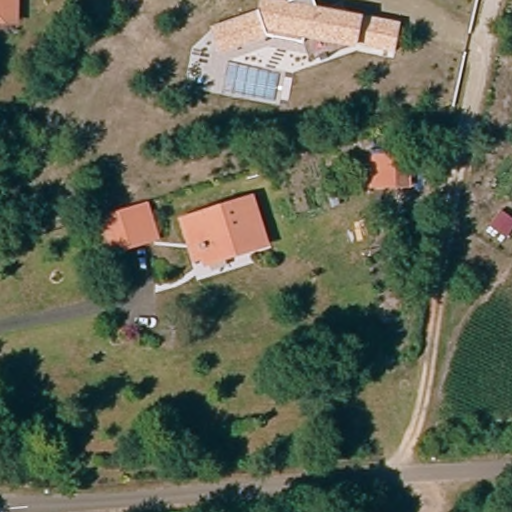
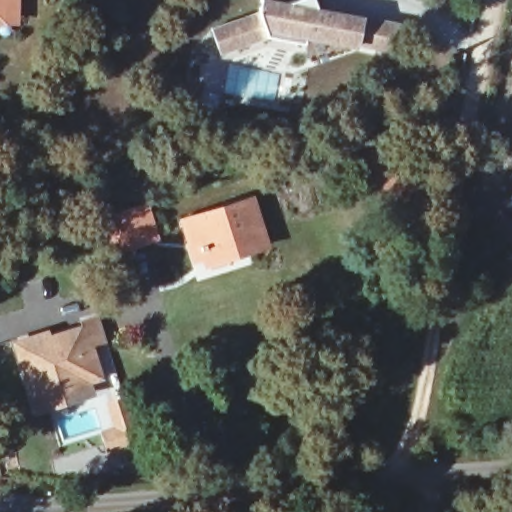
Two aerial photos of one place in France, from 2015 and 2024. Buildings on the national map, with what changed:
unchanged [(7,4),(6,21),(0,21),(0,0),(8,0),(7,4)]
unchanged [(210,26),(258,10),(260,0),(280,0),(287,1),(291,0),(314,0),(316,7),(363,16),(401,23),(396,54),(358,48),(345,46),(310,59),(304,44),(266,36),(219,54),(210,26)]
unchanged [(367,189),(367,154),(410,155),(410,189),(367,189)]
unchanged [(207,261),(205,253),(192,255),(188,239),(183,215),(250,195),(262,240),(244,245),(245,250),(207,261)]
unchanged [(106,214),(134,205),(146,200),(157,240),(145,244),(116,252),(106,214)]
unchanged [(502,210),(512,218),(512,230),(506,237),(491,225),(502,210)]
new [(47,328),(49,333),(81,324),(79,318),(98,313),(105,341),(94,345),(103,378),(91,382),(96,395),(33,414),(13,340),(47,328)]
new [(127,395),(140,442),(106,454),(99,432),(111,427),(104,403),(127,395)]

